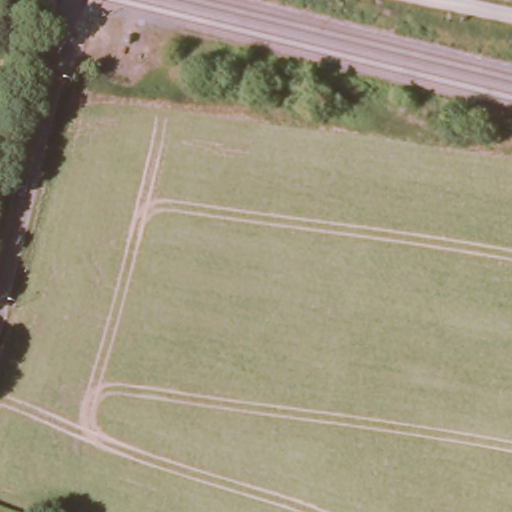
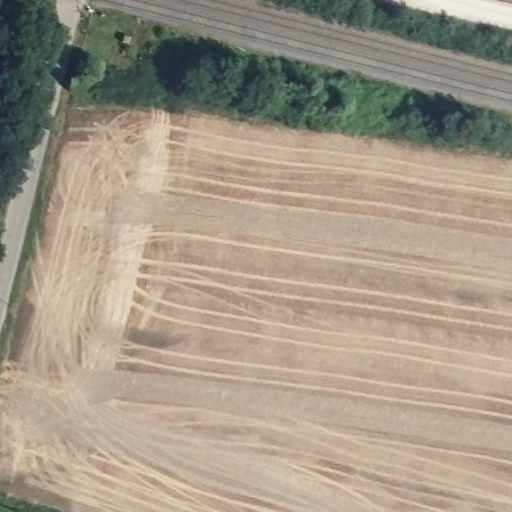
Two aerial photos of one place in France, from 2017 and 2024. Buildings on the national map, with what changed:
[]

